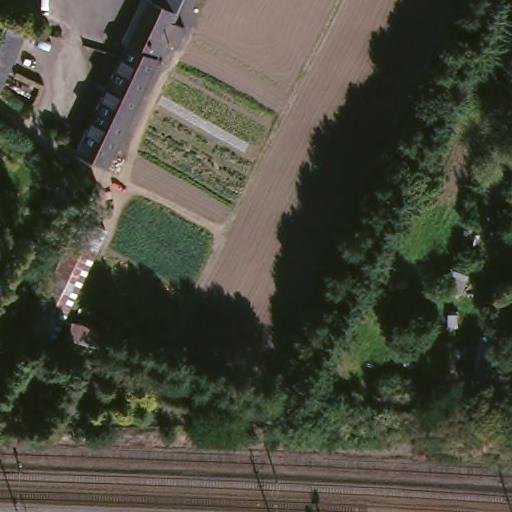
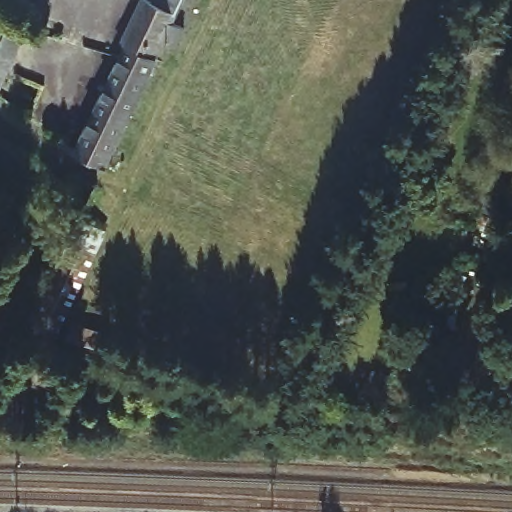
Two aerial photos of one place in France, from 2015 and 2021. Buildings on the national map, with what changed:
unchanged [(178,18),(143,91),(110,161),(107,160),(81,147),(124,53),(129,41),(127,40),(145,0),(157,0),(158,0),(187,0),(178,18)]
unchanged [(0,40),(1,39),(0,39),(0,30),(6,17),(14,21),(5,42),(17,48),(0,86),(0,40)]
unchanged [(109,227),(61,340),(28,325),(82,215),(109,227)]

